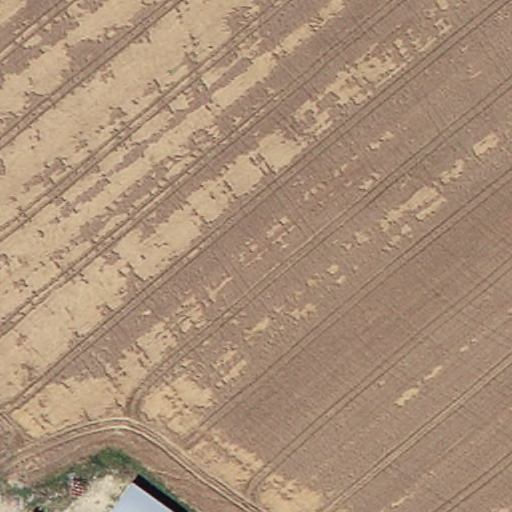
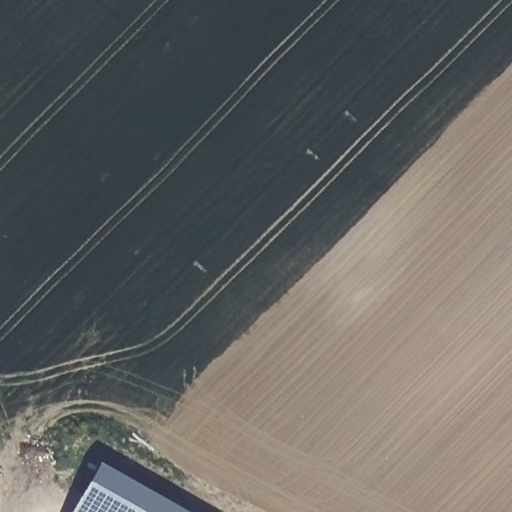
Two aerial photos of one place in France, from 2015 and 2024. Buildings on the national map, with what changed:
new [(98,465),(181,512),(71,512),(98,465)]
demolished [(139,481),(181,512),(117,512),(139,481)]

